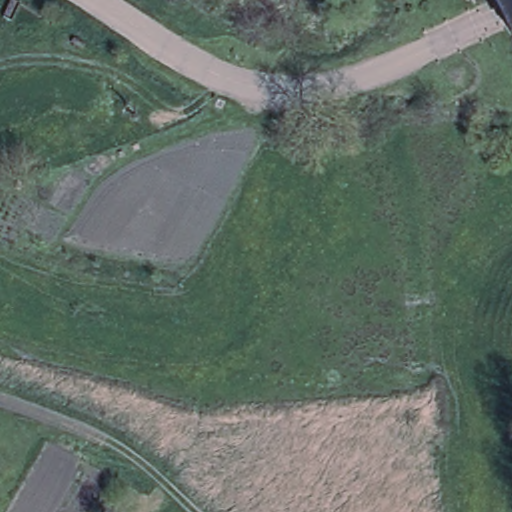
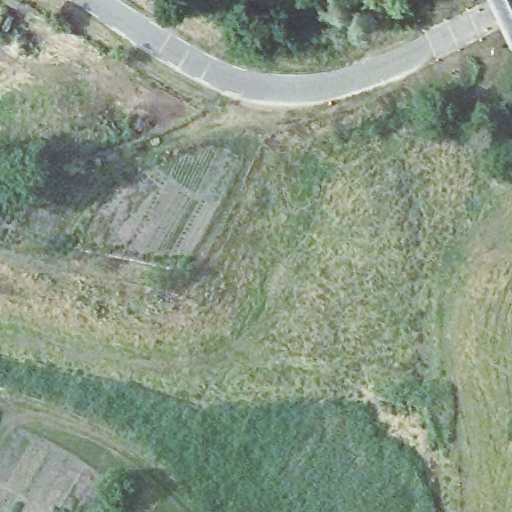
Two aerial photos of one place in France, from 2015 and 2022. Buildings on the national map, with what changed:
unchanged [(492,0),(512,0),(512,41),(492,0)]

